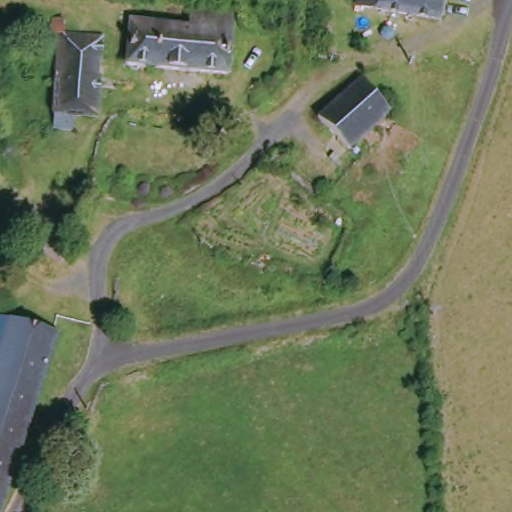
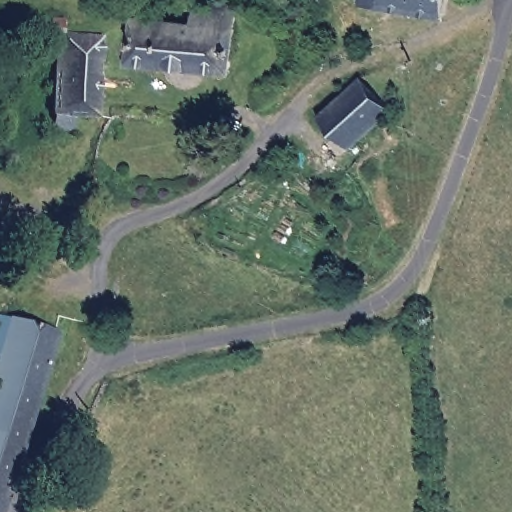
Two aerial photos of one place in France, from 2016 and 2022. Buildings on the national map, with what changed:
unchanged [(457,26),(371,11),(374,0),(462,0),(457,26)]
unchanged [(203,6),(242,12),(236,77),(132,67),(137,24),(198,30),(203,6)]
unchanged [(55,37),(56,21),(72,20),(73,37),(111,38),(105,124),(84,123),(83,137),(60,136),(67,37),(55,37)]
unchanged [(328,120),(371,85),(395,112),(350,147),(328,120)]
unchanged [(0,512),(0,380),(6,361),(0,359),(0,348),(8,322),(67,343),(13,512),(0,512)]

